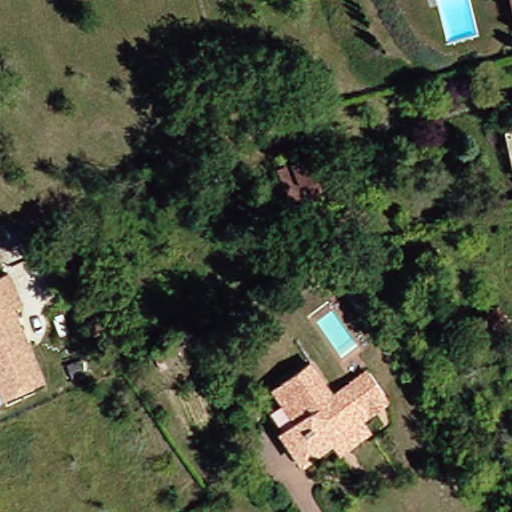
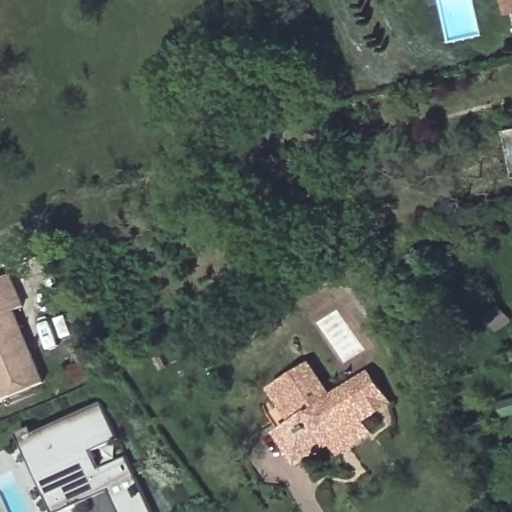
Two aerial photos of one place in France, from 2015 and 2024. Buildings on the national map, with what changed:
unchanged [(512,27),(508,15),(504,0),(512,0),(512,27)]
unchanged [(318,176),(303,184),(293,164),(308,157),(318,176)]
unchanged [(47,383),(8,400),(0,381),(0,279),(12,275),(26,307),(16,311),(25,332),(33,350),(47,383)]
unchanged [(335,453),(335,452),(328,443),(296,465),(275,433),(263,415),(278,404),(268,390),(305,364),(327,397),(361,373),(382,404),(356,421),(363,433),(335,453)]
new [(32,429),(36,436),(102,406),(117,440),(91,452),(100,470),(126,459),(151,512),(120,512),(111,491),(65,512),(57,512),(20,435),(32,429)]

